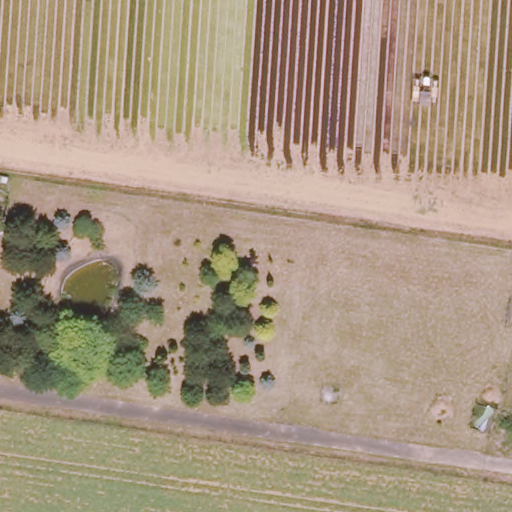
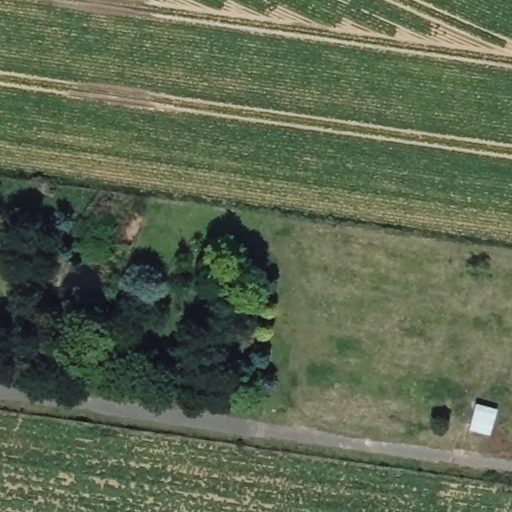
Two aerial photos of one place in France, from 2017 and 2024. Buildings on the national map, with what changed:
unchanged [(493,435),(466,428),(475,399),(502,407),(493,435)]

